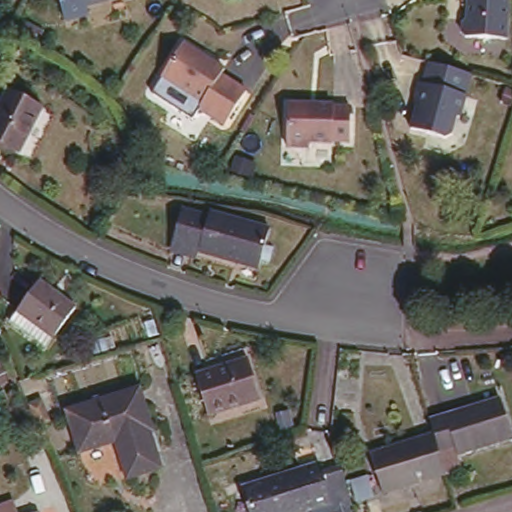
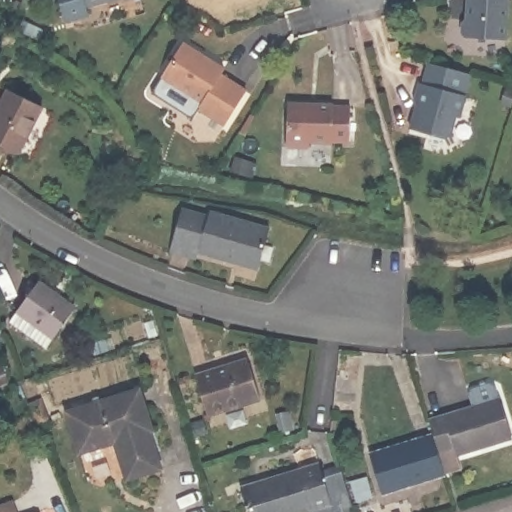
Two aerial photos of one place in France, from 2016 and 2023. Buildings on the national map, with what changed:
unchanged [(465,35),(462,31),(462,20),(467,16),(468,0),(508,0),(505,37),(465,35)]
unchanged [(221,63),(217,69),(243,84),(222,119),(195,102),(199,96),(158,71),(179,37),(221,63)]
unchanged [(462,95),(460,94),(451,133),(442,137),(408,129),(415,99),(409,97),(413,82),(417,83),(423,61),(468,72),(462,95)]
unchanged [(0,144),(0,106),(7,91),(42,108),(41,110),(20,153),(0,144)]
unchanged [(285,97),(330,99),(330,100),(347,101),(346,136),(328,135),(328,136),(306,135),(306,141),(283,140),(285,97)]
unchanged [(174,253),(177,241),(188,207),(214,214),(215,211),(277,229),(265,269),(204,251),(201,261),(174,253)]
unchanged [(50,273),(87,298),(57,343),(20,318),(50,273)]
unchanged [(155,322),(159,335),(151,338),(147,324),(155,322)]
unchanged [(111,340),(113,350),(102,352),(100,342),(111,340)]
unchanged [(197,376),(249,360),(261,400),(209,416),(197,376)]
unchanged [(157,431),(167,468),(134,478),(122,441),(87,452),(75,411),(147,389),(159,430),(157,431)]
unchanged [(347,392),(344,414),(332,412),(336,391),(347,392)]
unchanged [(505,398),(512,424),(512,441),(459,456),(457,448),(442,453),(437,435),(433,420),(505,398)]
unchanged [(31,404),(44,399),(51,419),(37,424),(31,404)]
unchanged [(442,453),(449,475),(386,494),(373,453),(437,435),(442,453)]
unchanged [(298,512),(238,512),(234,496),(225,498),(223,491),(231,487),(309,464),(315,481),(328,477),(337,507),(338,512),(302,512),(302,511),(298,512)]
unchanged [(21,512),(4,512),(20,507),(21,512)]
unchanged [(43,512),(34,512),(42,509),(43,512)]

